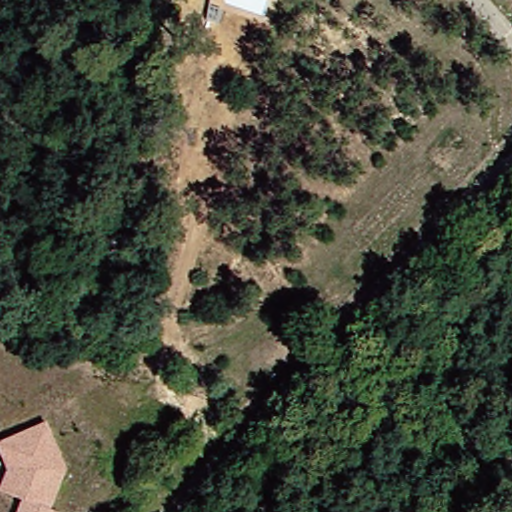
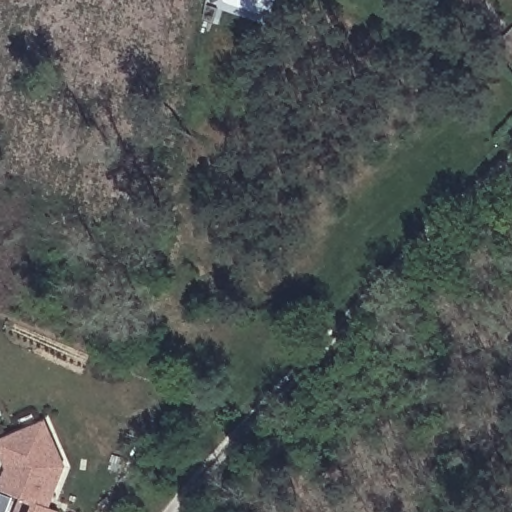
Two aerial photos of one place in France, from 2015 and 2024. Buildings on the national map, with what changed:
unchanged [(23,497),(11,493),(0,489),(0,486),(7,467),(0,452),(0,440),(6,436),(41,420),(62,465),(48,507),(57,510),(56,512),(17,512),(23,497)]

